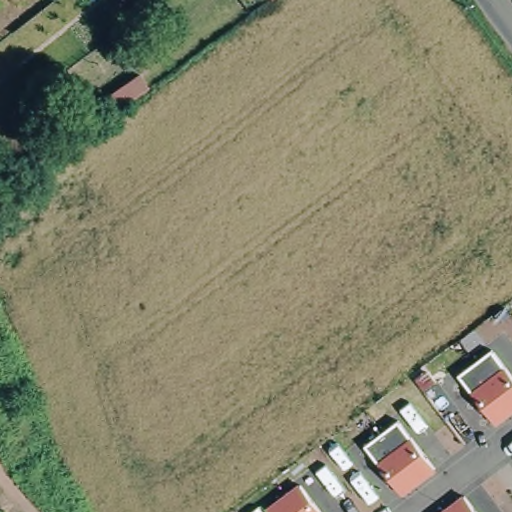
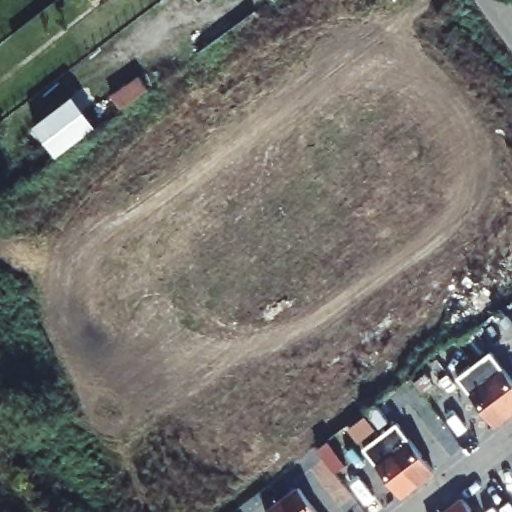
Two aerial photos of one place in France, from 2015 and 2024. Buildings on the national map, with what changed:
new [(121,106),(112,94),(139,74),(149,85),(121,106)]
new [(33,125),(73,94),(96,125),(57,156),(33,125)]
unchanged [(495,426),(455,375),(488,350),(512,382),(512,412),(495,426)]
unchanged [(399,498),(363,448),(398,420),(433,471),(399,498)]
unchanged [(313,512),(263,512),(293,485),(313,512)]
unchanged [(473,512),(439,512),(460,497),(473,512)]

